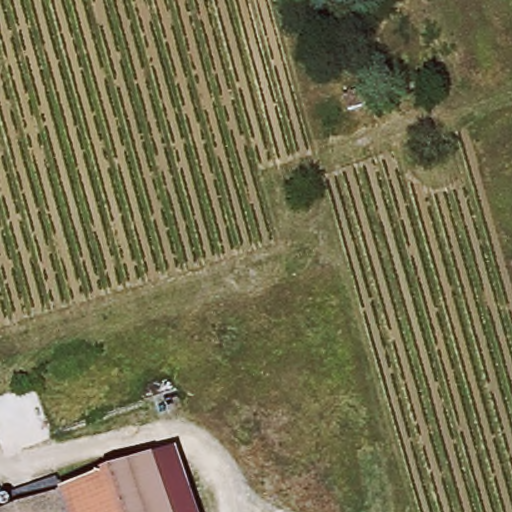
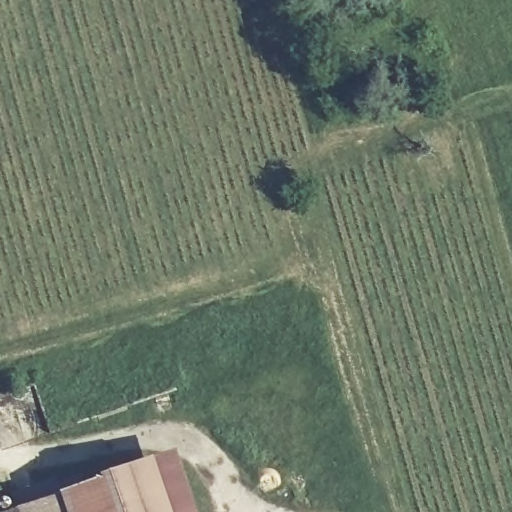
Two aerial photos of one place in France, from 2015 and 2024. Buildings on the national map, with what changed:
unchanged [(53,476),(79,468),(83,480),(184,448),(206,512),(0,512),(0,506),(57,488),(53,476)]

